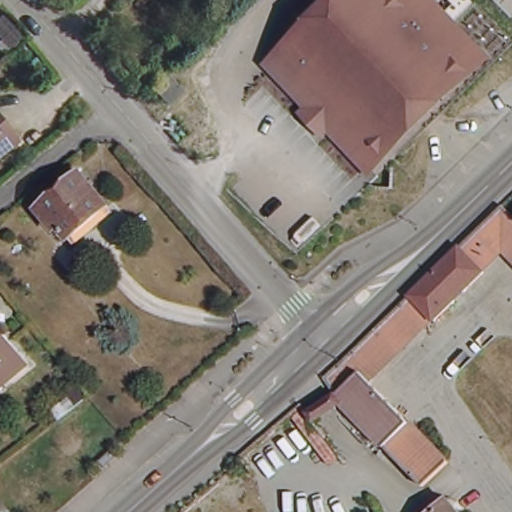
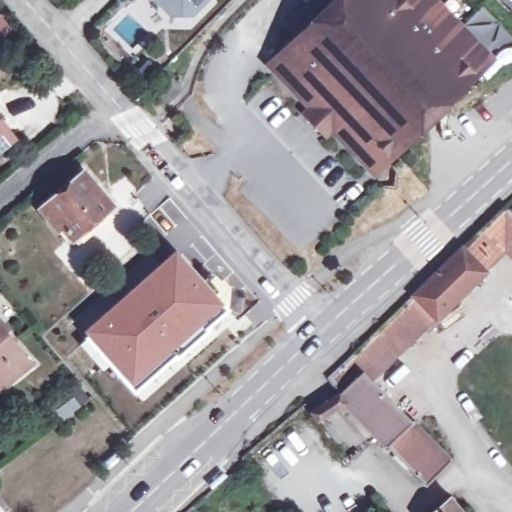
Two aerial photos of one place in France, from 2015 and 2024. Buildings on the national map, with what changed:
new [(168,16),(153,0),(209,0),(192,17),(168,16)]
unchanged [(277,45),(324,0),(399,0),(463,67),(377,150),(277,45)]
unchanged [(463,67),(399,0),(426,0),(477,53),(463,67)]
unchanged [(377,150),(363,163),(263,59),(277,45),(377,150)]
unchanged [(7,143),(0,149),(0,136),(7,143)]
unchanged [(68,241),(63,235),(35,200),(72,169),(102,203),(107,209),(68,241)]
unchanged [(490,276),(440,325),(440,323),(417,345),(405,357),(375,385),(453,466),(429,489),(348,407),(336,385),(335,383),(355,363),(405,314),(423,296),(455,264),(505,215),(510,210),(512,213),(512,257),(510,255),(489,275),(490,276)]
new [(175,248),(222,304),(132,385),(83,330),(175,248)]
unchanged [(1,334),(25,364),(0,386),(0,335),(1,334)]
unchanged [(77,386),(88,400),(62,420),(52,406),(77,386)]
unchanged [(450,499),(460,512),(434,512),(450,499)]

